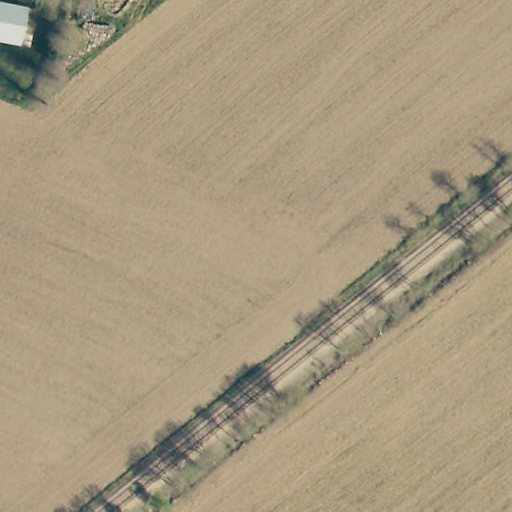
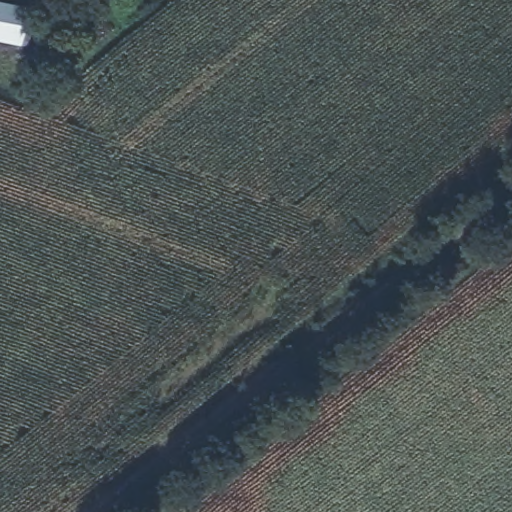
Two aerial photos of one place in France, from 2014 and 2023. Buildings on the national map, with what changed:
unchanged [(27,47),(0,42),(0,4),(34,11),(27,47)]

